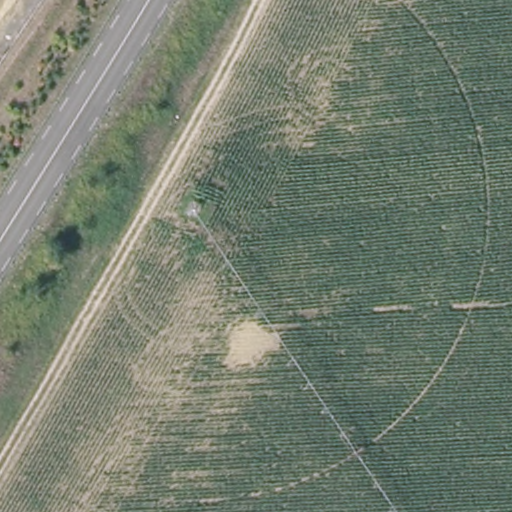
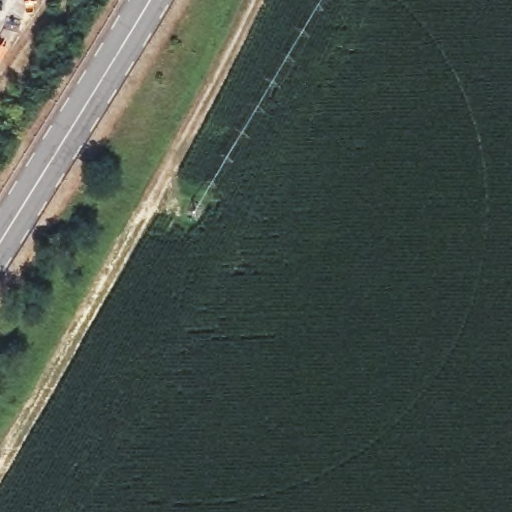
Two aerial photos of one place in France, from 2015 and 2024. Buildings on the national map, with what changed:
[]

